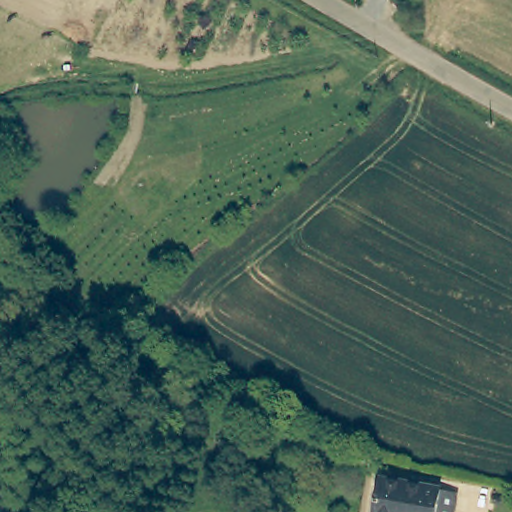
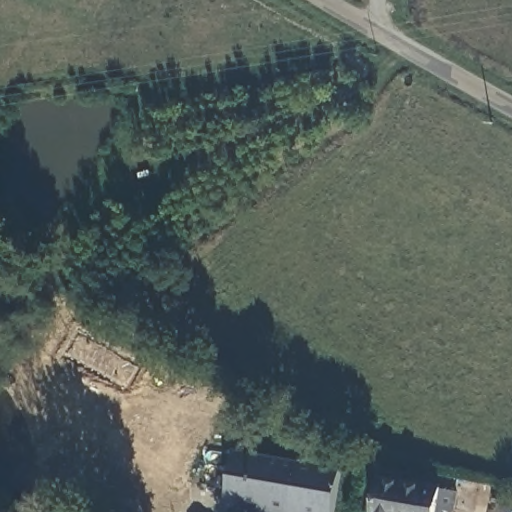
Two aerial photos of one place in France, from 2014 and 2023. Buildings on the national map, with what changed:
new [(342,472),(335,512),(255,512),(225,507),(237,452),(342,472)]
unchanged [(459,502),(457,512),(379,512),(387,474),(446,486),(445,488),(462,491),(459,502)]

